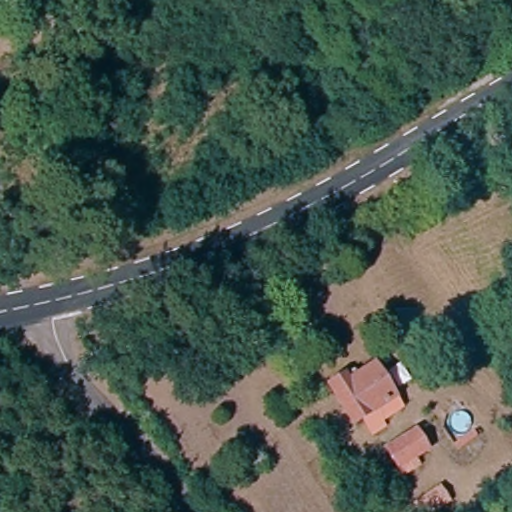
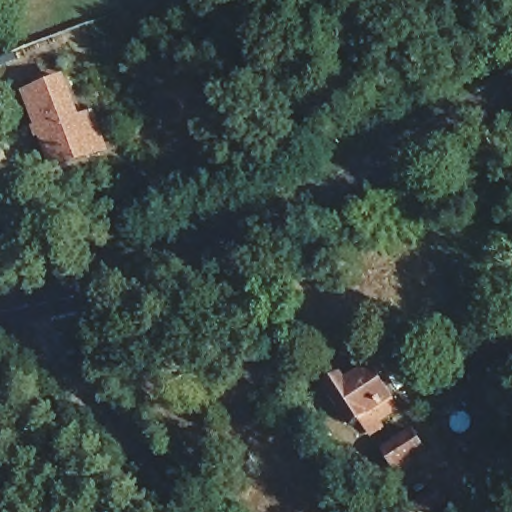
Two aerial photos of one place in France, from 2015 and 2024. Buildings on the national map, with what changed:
new [(110,145),(96,151),(59,164),(31,89),(68,76),(83,116),(97,111),(110,145)]
unchanged [(346,364),(352,374),(375,360),(396,388),(385,397),(395,405),(385,411),(388,418),(378,424),(369,410),(359,416),(330,377),(346,364)]
unchanged [(395,481),(375,453),(406,432),(418,452),(404,463),(410,470),(395,481)]
unchanged [(435,480),(445,489),(447,493),(421,512),(392,512),(435,480)]

